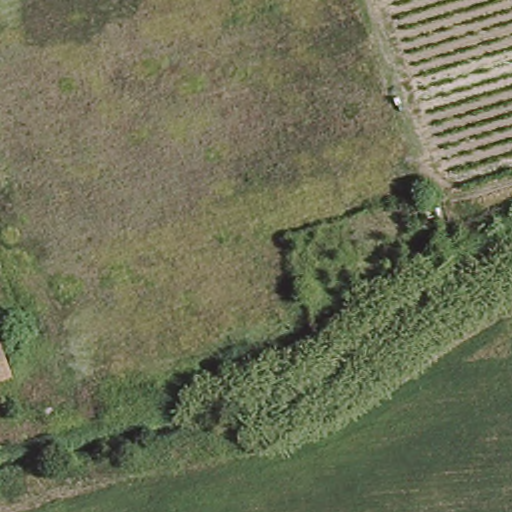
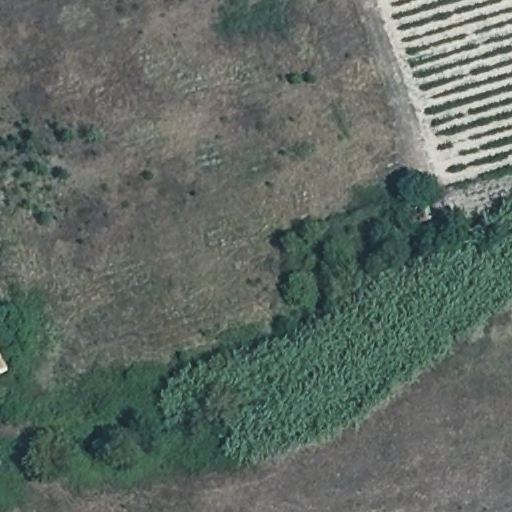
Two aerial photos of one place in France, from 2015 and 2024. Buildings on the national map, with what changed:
unchanged [(0,381),(0,350),(10,378),(0,381)]

